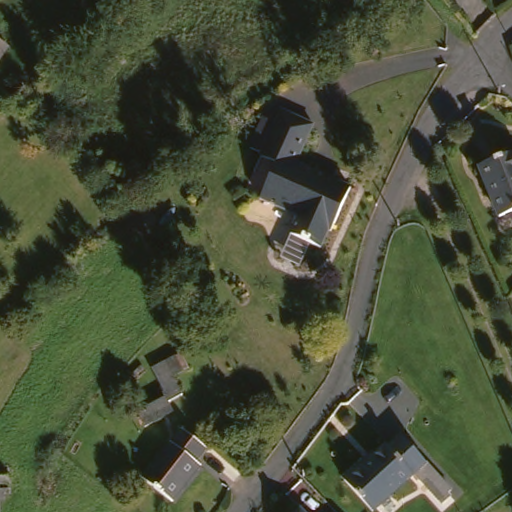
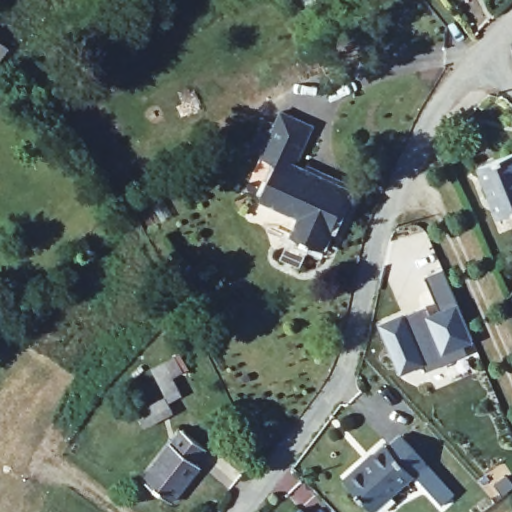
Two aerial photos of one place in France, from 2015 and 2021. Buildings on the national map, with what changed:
unchanged [(14,45),(0,65),(0,33),(14,45)]
unchanged [(321,123),(304,160),(359,186),(339,229),(337,227),(328,246),(317,241),(307,263),(288,254),(308,214),(269,196),(285,161),(269,154),(290,109),(321,123)]
unchanged [(487,164),(512,154),(512,213),(507,215),(487,164)]
new [(427,308),(436,326),(445,322),(426,278),(443,270),(476,342),(467,347),(470,354),(429,373),(425,365),(405,375),(384,327),(427,308)]
unchanged [(185,353),(192,369),(180,374),(190,392),(176,400),(158,367),(185,353)]
unchanged [(179,409),(150,425),(142,409),(171,394),(179,409)]
unchanged [(175,503),(147,481),(154,472),(187,430),(211,450),(201,462),(205,466),(179,498),(175,503)]
unchanged [(367,461),(370,461),(381,451),(383,452),(392,443),(395,444),(408,432),(456,488),(454,490),(458,494),(451,500),(448,496),(442,500),(419,472),(376,507),(349,476),(367,461)]
unchanged [(3,476),(5,512),(0,512),(0,476),(3,476)]
unchanged [(306,512),(296,512),(301,507),(306,512)]

